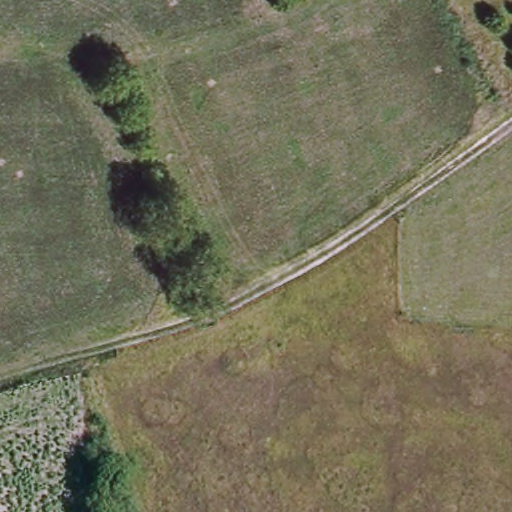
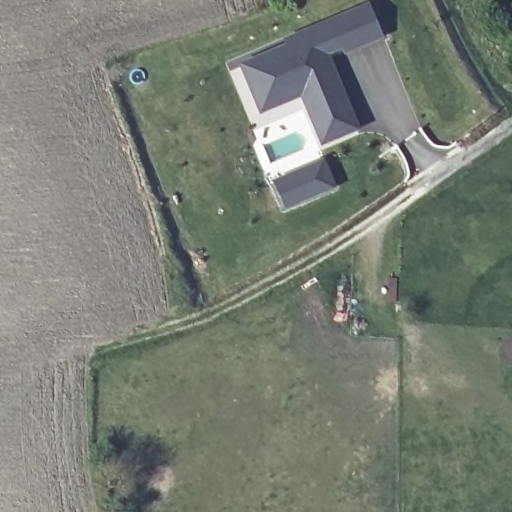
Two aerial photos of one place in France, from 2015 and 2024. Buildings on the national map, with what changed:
new [(290,38),(312,31),(335,22),(375,7),(385,38),(346,52),(323,61),(320,62),(325,77),(335,74),(355,130),(321,142),(303,92),(268,105),(258,78),(251,80),(245,61),(292,44),(290,38)]
new [(335,187),(285,209),(273,181),(323,160),(335,187)]

